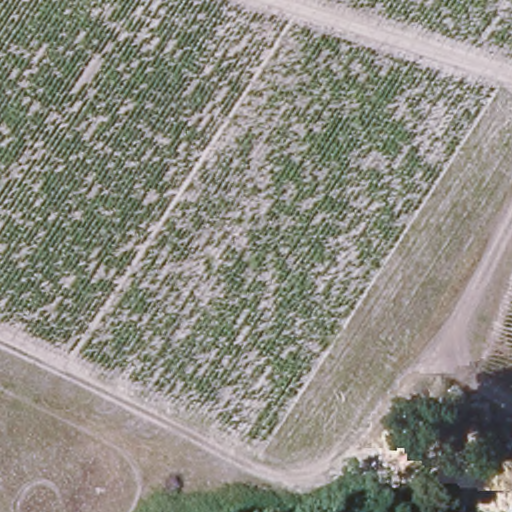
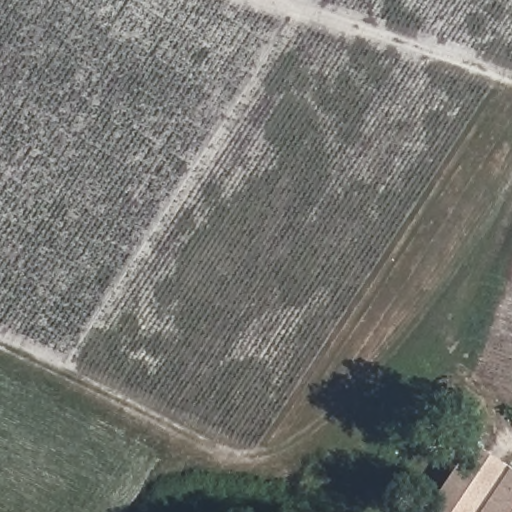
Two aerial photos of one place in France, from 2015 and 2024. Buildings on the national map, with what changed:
new [(475,442),(512,468),(512,512),(430,512),(475,442)]

